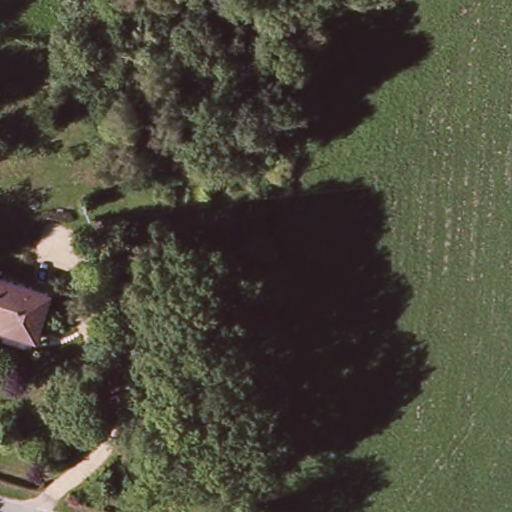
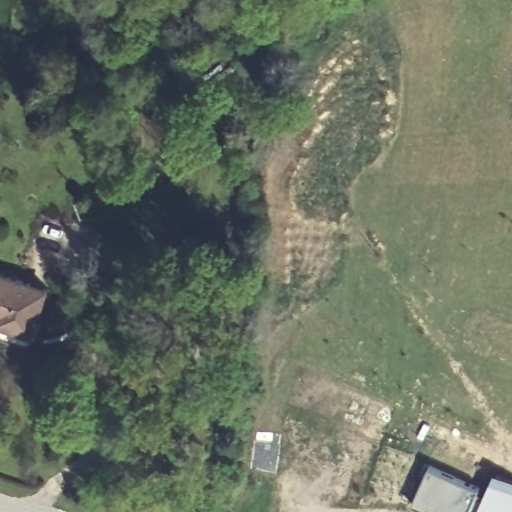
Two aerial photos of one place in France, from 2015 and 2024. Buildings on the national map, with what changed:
unchanged [(47,288),(34,332),(0,321),(0,272),(47,288)]
new [(480,488),(479,492),(488,496),(498,474),(512,480),(512,512),(433,512),(415,503),(431,465),(480,488)]

